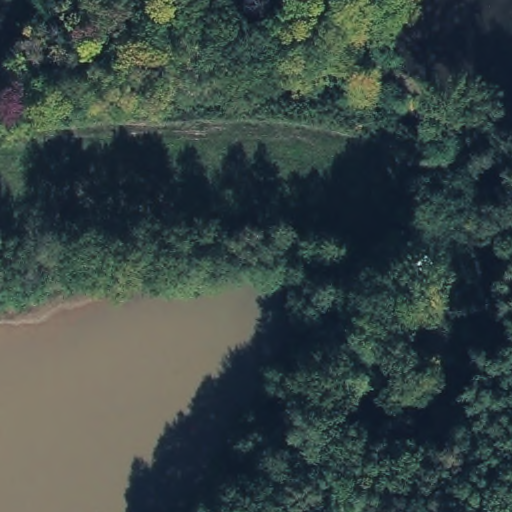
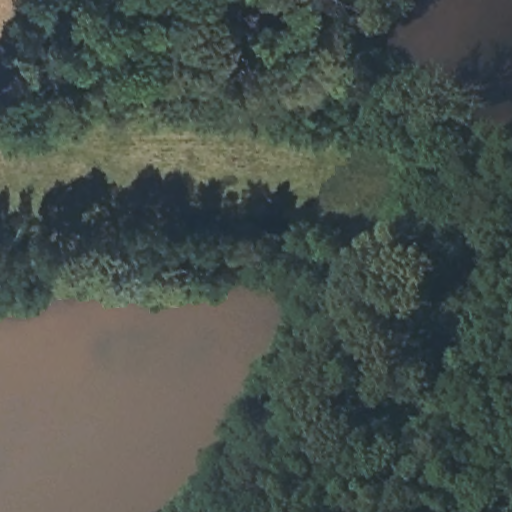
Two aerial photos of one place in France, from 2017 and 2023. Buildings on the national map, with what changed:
unchanged [(295,101),(291,126),(270,121),(277,98),(295,101)]

